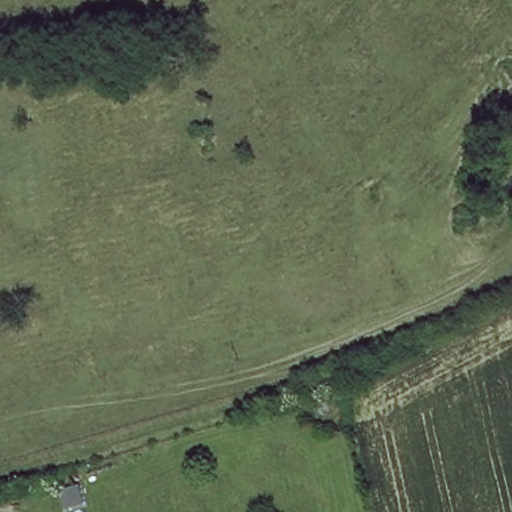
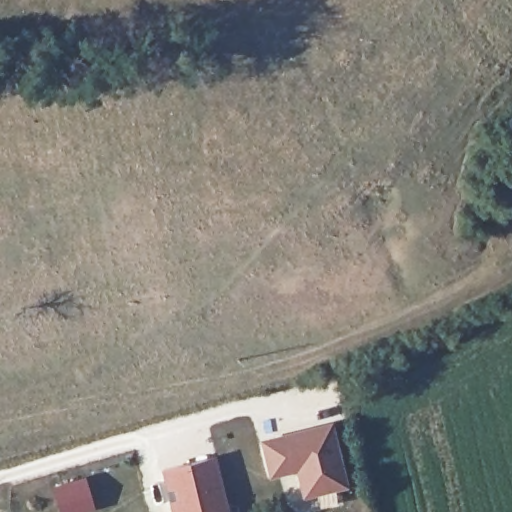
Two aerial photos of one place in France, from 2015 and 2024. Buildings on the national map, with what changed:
new [(269,477),(259,439),(332,420),(348,487),(302,497),(295,472),(269,477)]
new [(216,454),(230,512),(171,512),(159,468),(216,454)]
new [(86,475),(97,511),(93,512),(58,512),(51,486),(86,475)]

